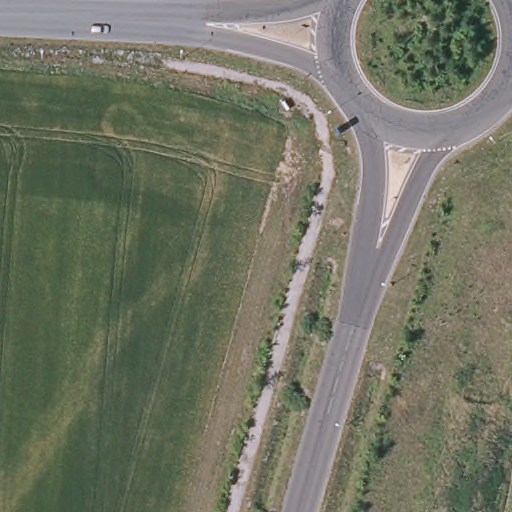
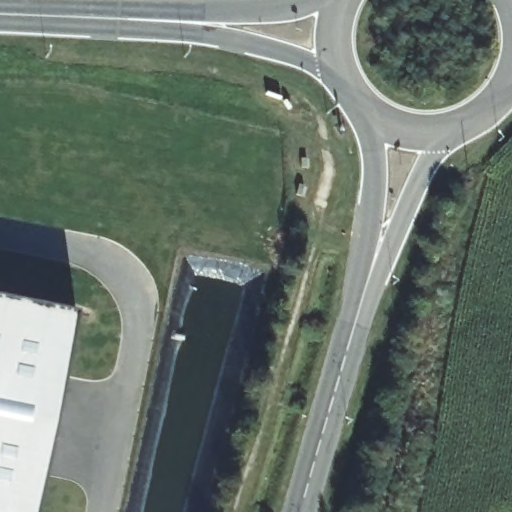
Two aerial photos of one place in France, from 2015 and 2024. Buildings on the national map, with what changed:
new [(37,512),(0,512),(0,302),(75,318),(37,512)]

